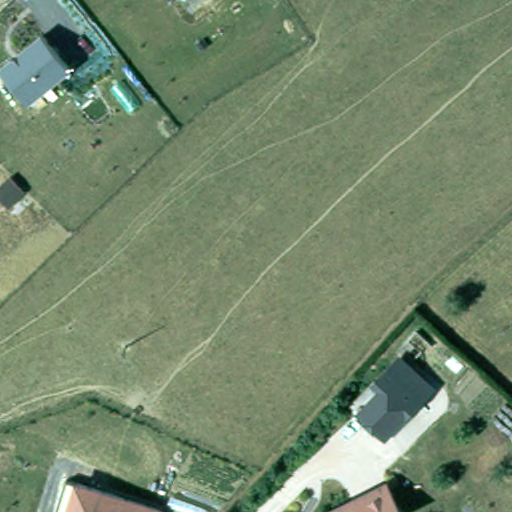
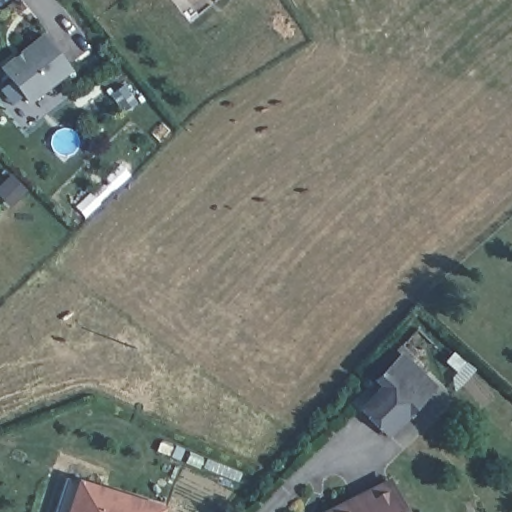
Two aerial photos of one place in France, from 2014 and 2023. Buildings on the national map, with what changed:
unchanged [(27,102),(0,69),(0,62),(40,28),(71,67),(27,102)]
unchanged [(357,407),(378,388),(371,380),(401,353),(437,388),(387,437),(357,407)]
unchanged [(163,512),(56,512),(67,474),(165,505),(163,512)]
unchanged [(404,512),(329,512),(387,482),(404,512)]

